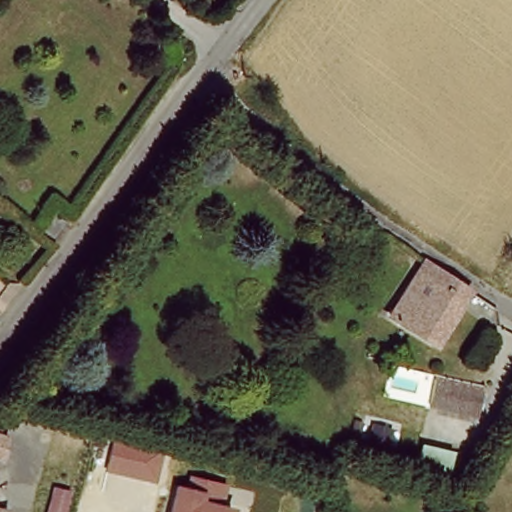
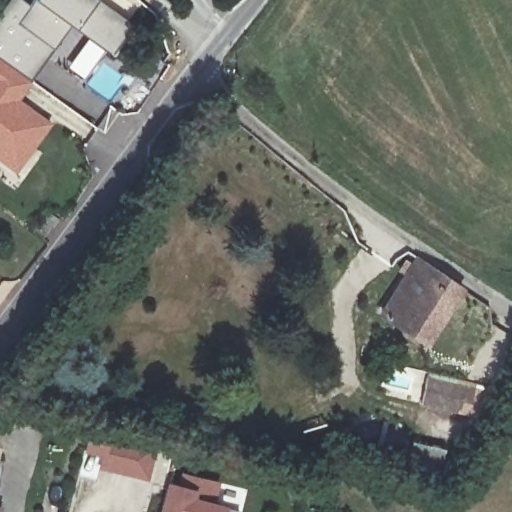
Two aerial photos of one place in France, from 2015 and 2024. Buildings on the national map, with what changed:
new [(19,0),(28,6),(33,0),(99,0),(132,26),(113,54),(75,29),(69,23),(30,79),(33,81),(20,99),(53,123),(16,172),(0,161),(0,15),(11,0),(19,0)]
demolished [(193,15),(201,3),(214,12),(206,24),(193,15)]
unchanged [(429,342),(385,313),(422,258),(466,289),(429,342)]
new [(426,373),(484,385),(479,419),(419,408),(426,373)]
unchanged [(103,456),(85,452),(90,433),(107,437),(158,448),(149,481),(100,470),(103,456)]
unchanged [(0,435),(3,436),(0,451),(0,435)]
new [(411,439),(445,447),(439,469),(405,462),(411,439)]
unchanged [(215,502),(226,505),(224,512),(162,512),(168,483),(176,484),(181,475),(218,482),(215,502)]
unchanged [(3,512),(0,512),(0,506),(3,506),(3,512)]

